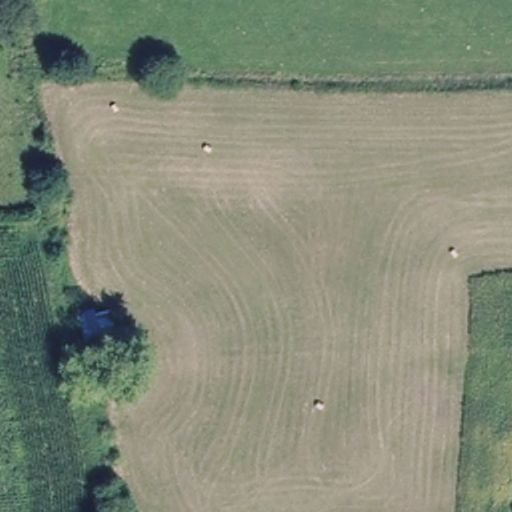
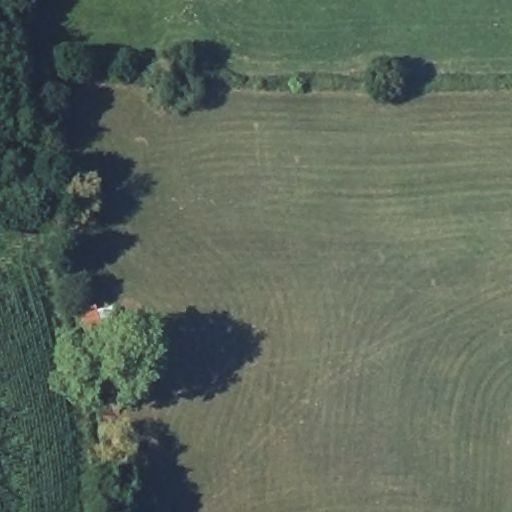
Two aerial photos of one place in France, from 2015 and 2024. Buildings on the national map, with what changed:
unchanged [(109,344),(86,348),(81,316),(105,313),(109,344)]

